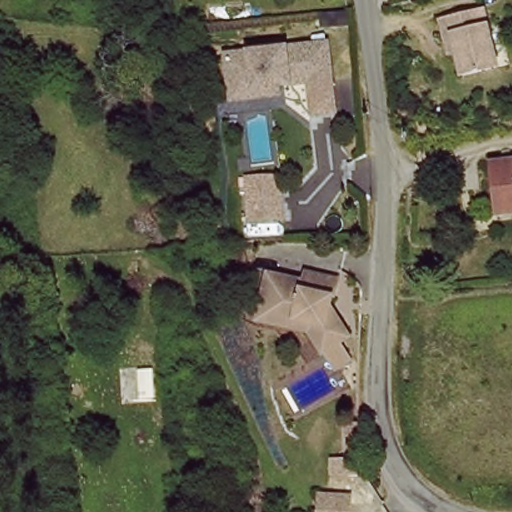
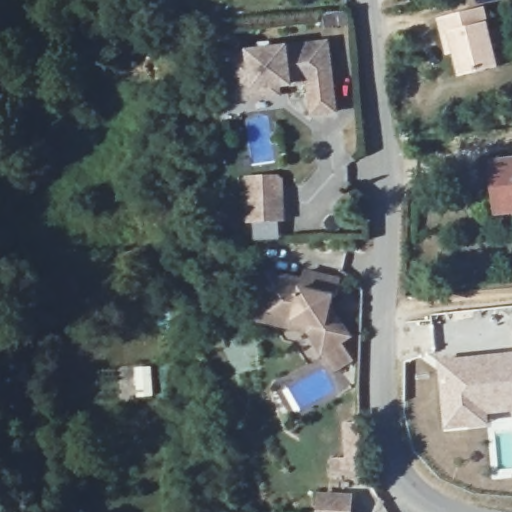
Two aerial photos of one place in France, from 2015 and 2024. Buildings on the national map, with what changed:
unchanged [(445,32),(443,16),(485,7),(498,64),(463,73),(458,48),(448,50),(445,32)]
unchanged [(230,92),(226,59),(326,47),(331,84),(288,89),(289,98),(278,99),(254,102),(231,105),(230,92)]
unchanged [(496,207),(492,166),(512,164),(512,216),(497,217),(496,207)]
unchanged [(275,172),(280,177),(281,217),(249,219),(248,173),(275,172)]
unchanged [(262,300),(270,269),(304,278),(307,267),(339,276),(337,296),(325,303),(326,307),(337,315),(351,335),(323,350),(310,330),(302,328),(257,316),(262,300)]
new [(481,353),(512,348),(512,413),(490,416),(491,427),(443,431),(435,354),(481,353)]
new [(343,460),(345,431),(356,428),(365,449),(355,452),(362,473),(333,476),(332,461),(343,460)]
unchanged [(346,512),(316,512),(317,496),(347,497),(346,512)]

